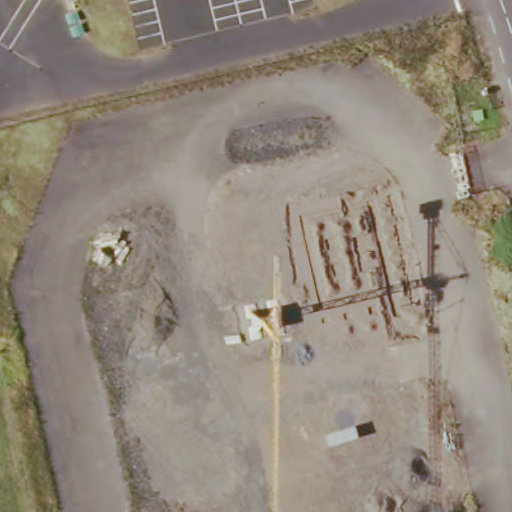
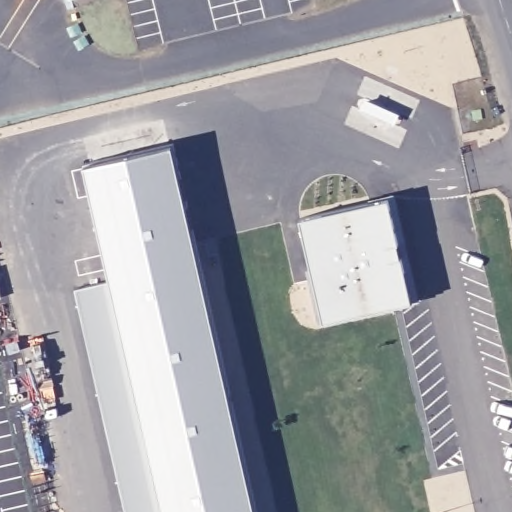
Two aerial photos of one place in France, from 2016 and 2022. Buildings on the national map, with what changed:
new [(111,280),(85,164),(173,144),(258,512),(126,512),(75,289),(111,280)]
new [(420,300),(411,301),(324,320),(299,218),(388,198),(396,194),(420,300)]

